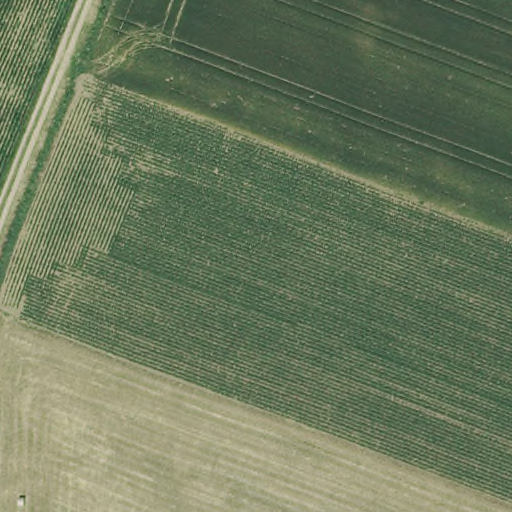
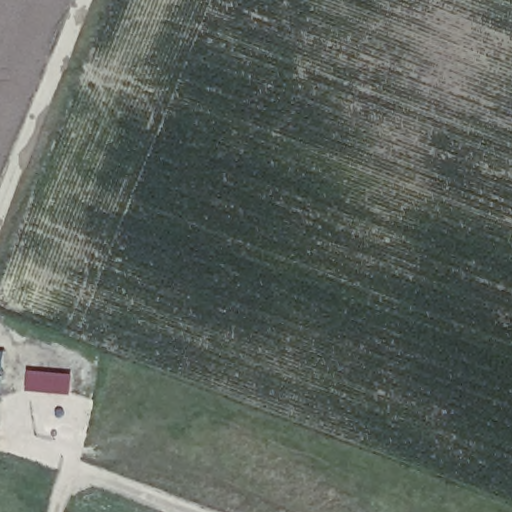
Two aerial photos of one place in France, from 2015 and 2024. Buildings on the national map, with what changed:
new [(78,376),(77,395),(32,391),(32,371),(78,376)]

